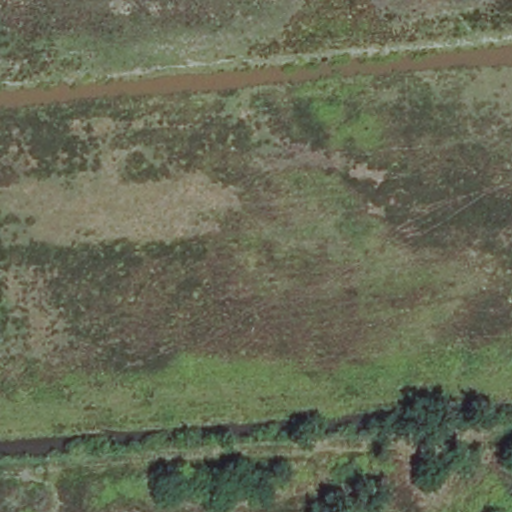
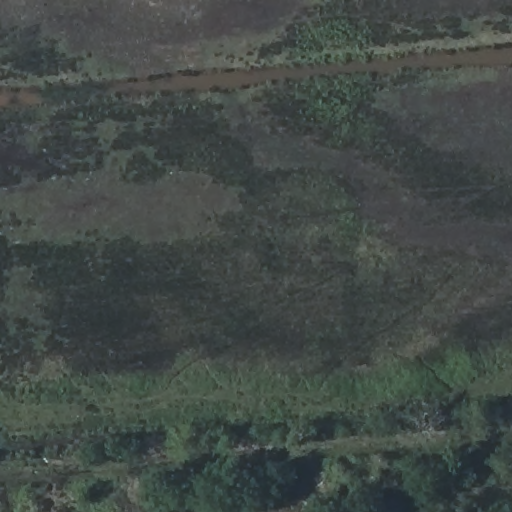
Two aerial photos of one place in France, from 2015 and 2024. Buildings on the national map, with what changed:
[]

